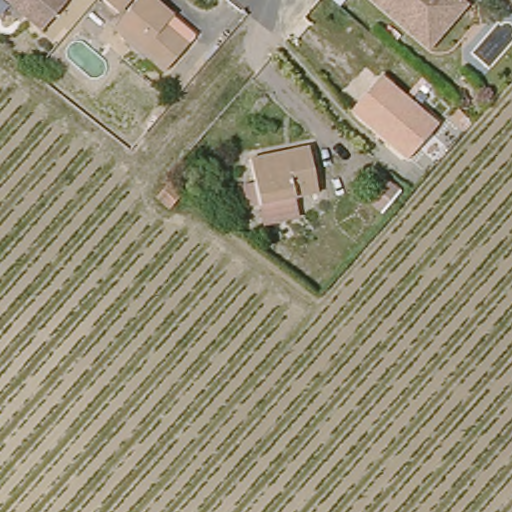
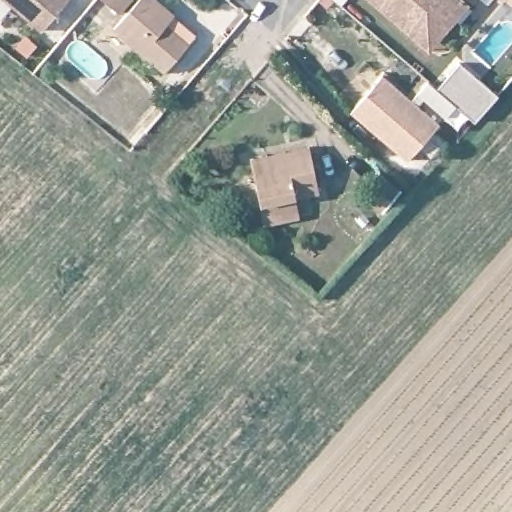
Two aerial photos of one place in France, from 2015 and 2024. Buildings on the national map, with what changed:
unchanged [(3,0),(65,0),(41,33),(3,0)]
unchanged [(107,0),(128,0),(120,11),(107,0)]
unchanged [(118,30),(143,0),(155,0),(174,16),(172,18),(166,26),(187,43),(166,69),(118,30)]
unchanged [(386,0),(429,34),(456,0),(469,0),(472,2),(430,53),(364,0),(386,0)]
unchanged [(456,0),(429,34),(386,0),(456,0)]
unchanged [(505,0),(511,0),(509,3),(505,0)]
new [(435,89),(460,60),(499,93),(474,121),(435,89)]
unchanged [(409,152),(354,104),(381,71),(439,121),(447,128),(427,150),(419,143),(409,152)]
unchanged [(322,192),(261,205),(251,159),(270,155),(271,162),(315,153),(322,192)]
unchanged [(401,192),(383,217),(361,199),(379,175),(401,192)]
unchanged [(182,201),(192,209),(191,215),(185,220),(173,210),(182,201)]

